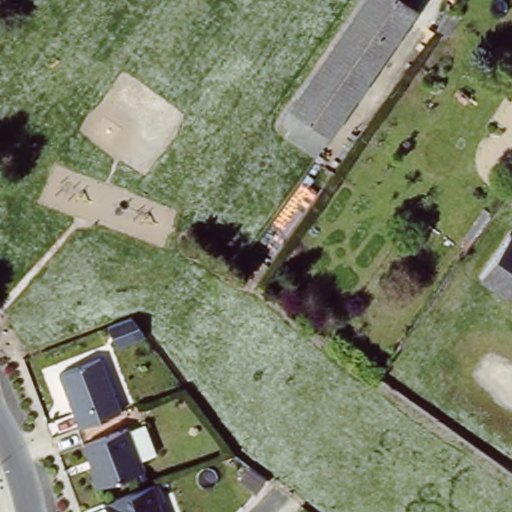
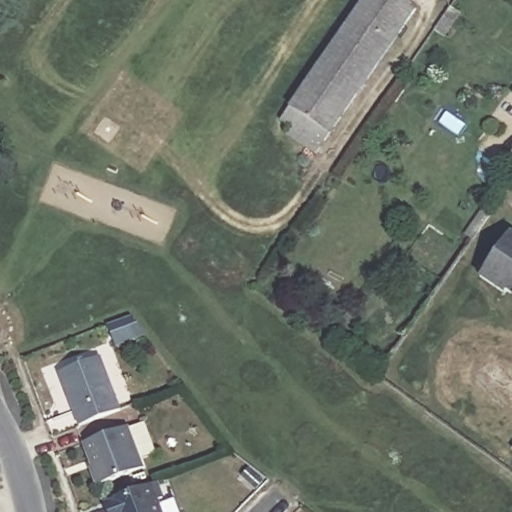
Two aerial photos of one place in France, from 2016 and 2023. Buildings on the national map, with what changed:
unchanged [(284,135),(294,120),(284,113),(365,0),(404,0),(419,11),(314,157),(284,135)]
unchanged [(464,13),(449,35),(439,28),(444,21),(454,7),(464,13)]
unchanged [(504,294),(479,276),(508,234),(512,238),(512,293),(508,290),(504,294)]
unchanged [(60,367),(99,353),(120,408),(81,423),(60,367)]
unchanged [(137,424),(148,453),(133,459),(138,471),(94,488),(87,469),(90,467),(82,446),(137,424)]
unchanged [(164,512),(106,512),(103,507),(159,485),(166,501),(161,503),(164,512)]

